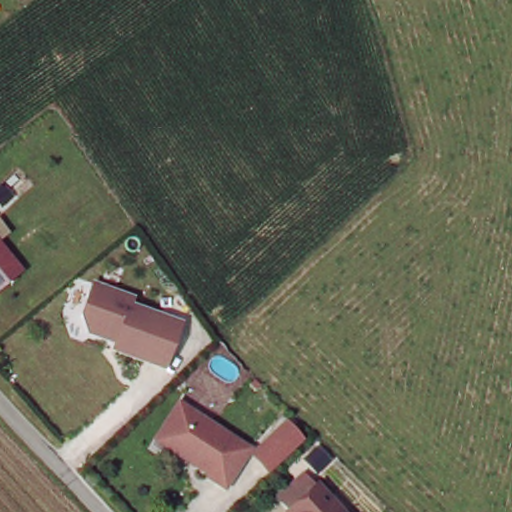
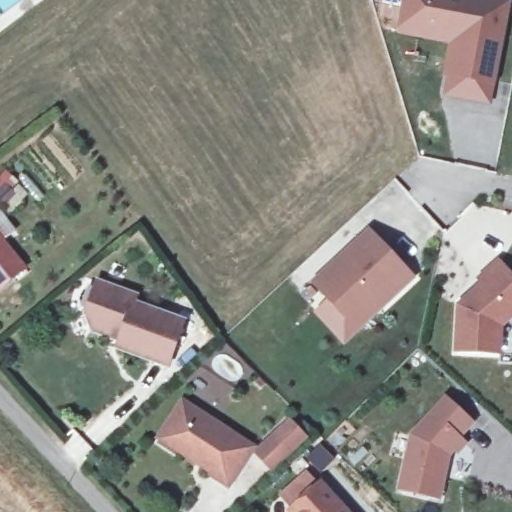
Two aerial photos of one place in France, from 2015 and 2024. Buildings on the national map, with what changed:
new [(441,75),(448,42),(397,34),(403,0),(503,0),(511,2),(493,86),(441,75)]
unchanged [(0,290),(0,218),(2,217),(14,232),(3,241),(25,271),(0,290)]
new [(341,346),(311,313),(325,300),(309,282),(366,227),(414,277),(341,346)]
new [(500,353),(452,353),(453,304),(478,282),(474,277),(496,257),(512,275),(512,316),(501,326),(500,353)]
unchanged [(145,292),(143,300),(188,317),(172,366),(113,345),(115,341),(93,335),(82,317),(98,277),(145,292)]
new [(459,437),(466,443),(456,455),(452,451),(449,455),(439,499),(396,491),(409,434),(444,395),(473,423),(459,437)]
unchanged [(255,447),(228,488),(156,441),(179,400),(255,447)]
new [(296,422),(310,437),(294,452),(276,468),(261,453),(280,436),(296,422)]
unchanged [(354,512),(289,512),(326,481),(354,512)]

